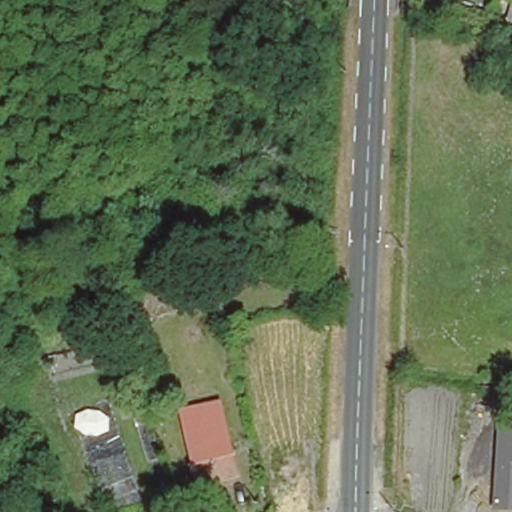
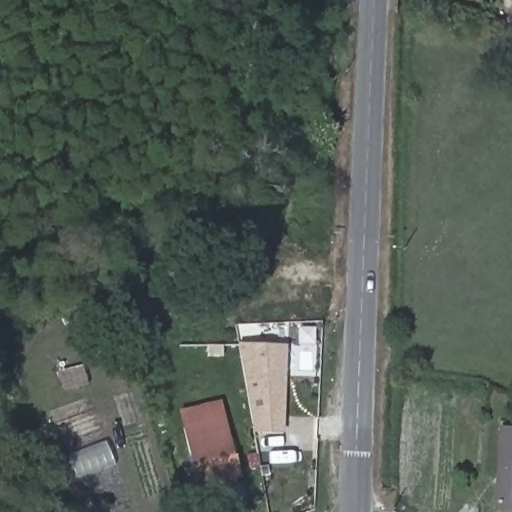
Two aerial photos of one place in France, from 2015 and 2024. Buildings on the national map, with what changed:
new [(512,7),(512,20),(509,20),(512,7)]
unchanged [(189,307),(140,322),(132,297),(180,282),(189,307)]
new [(241,347),(286,343),(285,434),(252,436),(241,347)]
unchanged [(235,470),(206,477),(202,458),(190,461),(176,405),(216,396),(235,470)]
unchanged [(501,425),(512,425),(512,511),(495,510),(501,425)]

